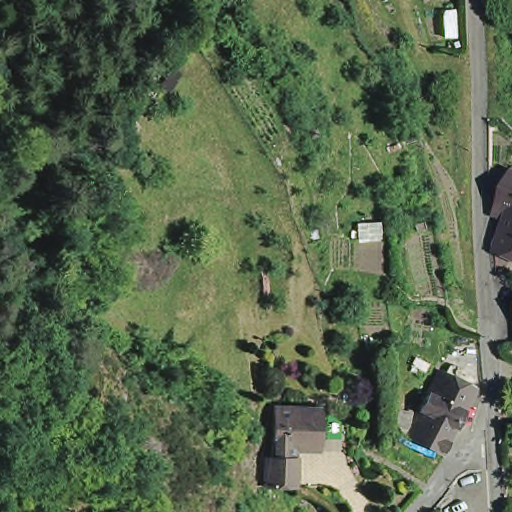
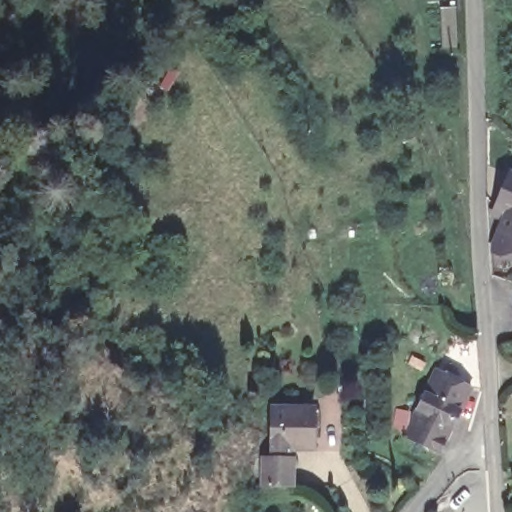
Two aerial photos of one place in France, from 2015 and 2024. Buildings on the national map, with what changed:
unchanged [(499,224),(489,220),(492,212),(489,210),(503,179),(512,183),(512,266),(486,255),(499,224)]
unchanged [(409,441),(414,430),(412,429),(419,417),(439,377),(474,395),(454,434),(447,447),(444,445),(439,456),(409,441)]
unchanged [(253,464),(261,464),(263,464),(263,413),(301,414),(301,452),(283,451),(282,464),(286,464),(286,487),(267,486),(253,486),(253,464)]

